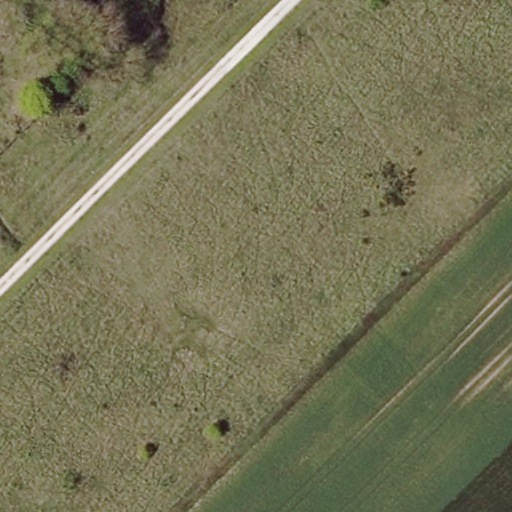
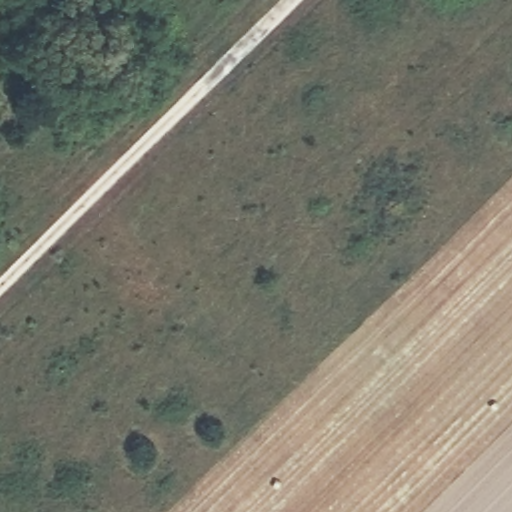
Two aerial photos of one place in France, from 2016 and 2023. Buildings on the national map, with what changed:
[]

